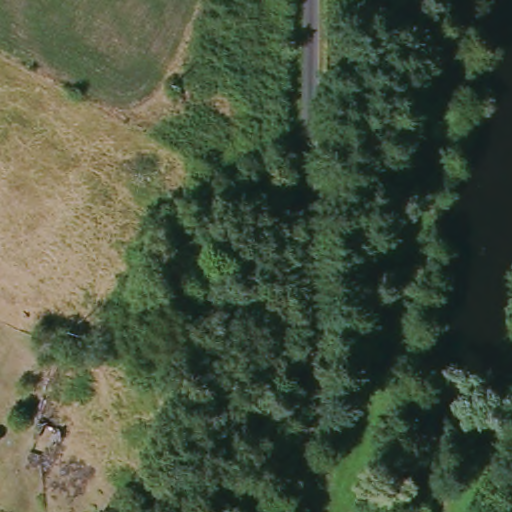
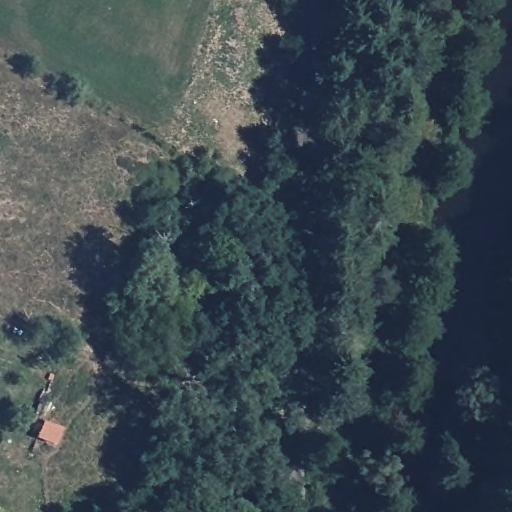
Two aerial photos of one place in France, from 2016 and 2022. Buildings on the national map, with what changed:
[]

